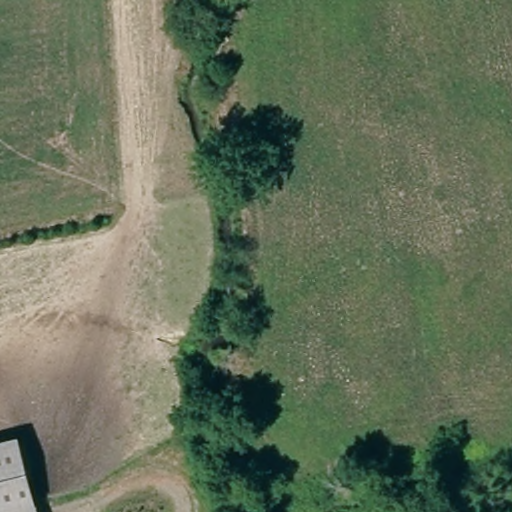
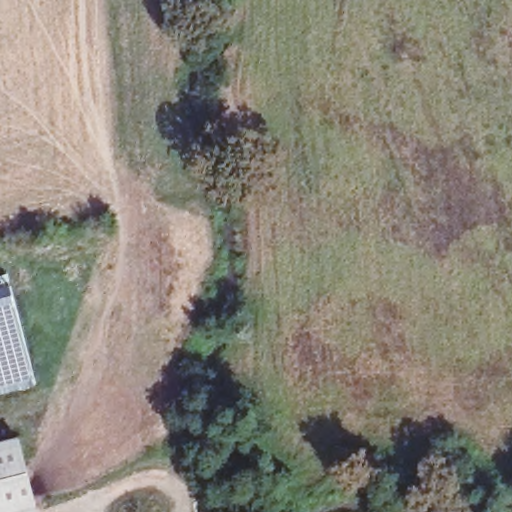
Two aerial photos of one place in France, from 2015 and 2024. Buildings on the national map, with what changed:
new [(36,385),(0,394),(0,288),(11,285),(36,385)]
unchanged [(0,449),(24,443),(42,512),(0,512),(0,449)]

